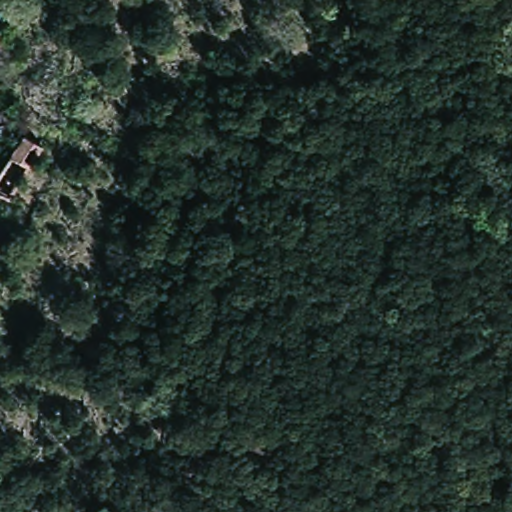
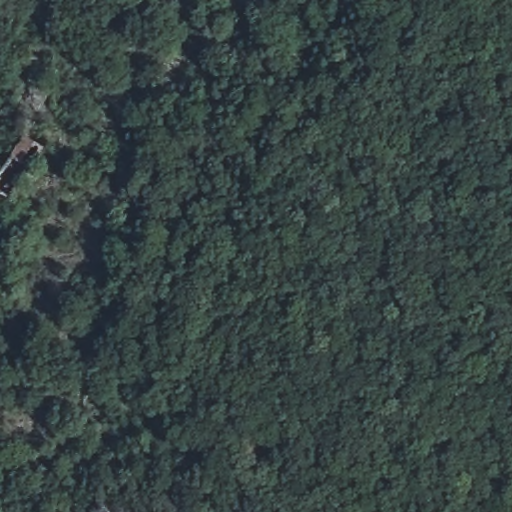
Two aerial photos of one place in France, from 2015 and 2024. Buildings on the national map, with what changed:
unchanged [(4,62),(0,63),(0,35),(4,62)]
unchanged [(0,186),(0,184),(30,135),(45,144),(13,195),(0,186)]

